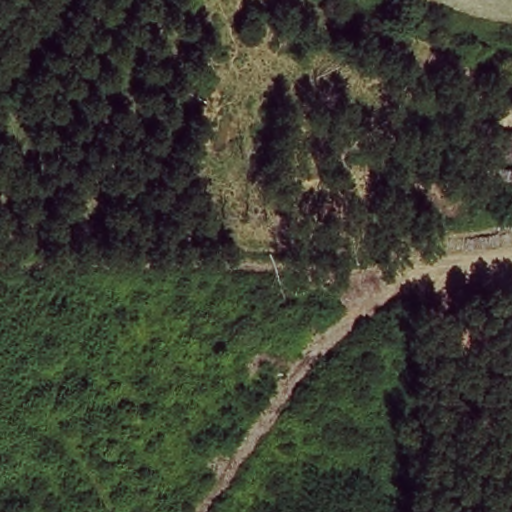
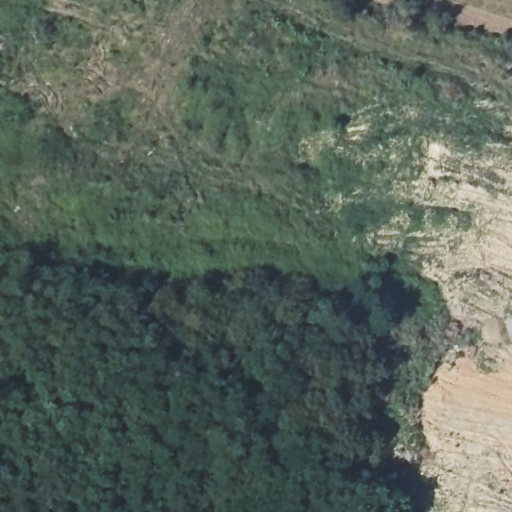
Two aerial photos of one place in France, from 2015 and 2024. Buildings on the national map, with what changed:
[]

